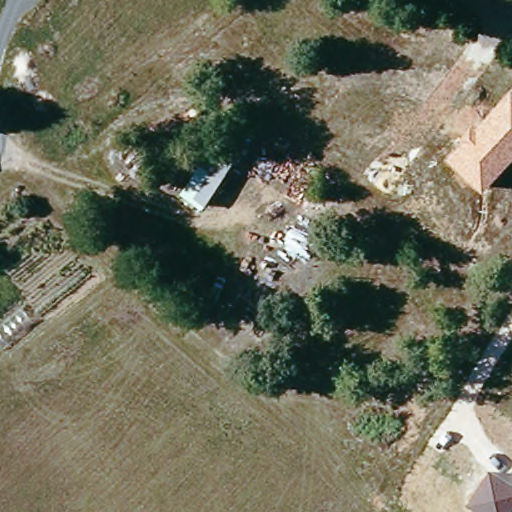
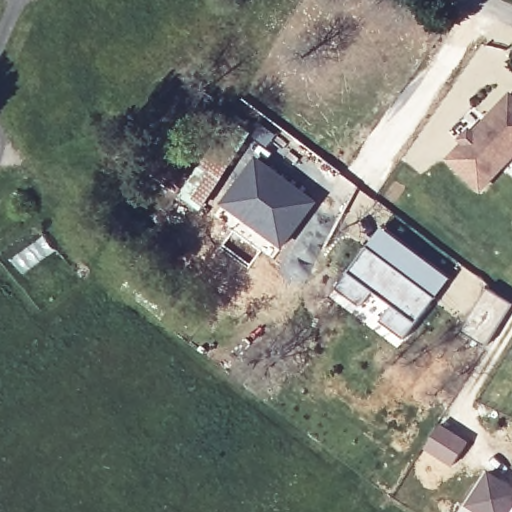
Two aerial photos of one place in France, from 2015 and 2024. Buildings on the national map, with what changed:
unchanged [(458,139),(472,125),(475,126),(510,89),(512,91),(512,160),(482,192),(447,158),(462,142),(458,139)]
unchanged [(226,121),(251,136),(200,214),(178,199),(226,121)]
new [(255,155),(319,202),(280,251),(219,204),(255,155)]
new [(379,229),(446,282),(413,323),(407,332),(340,278),(346,270),(379,229)]
new [(462,331),(487,290),(512,304),(512,305),(487,346),(462,331)]
unchanged [(512,510),(511,512),(476,512),(466,506),(489,469),(512,484),(512,510)]

